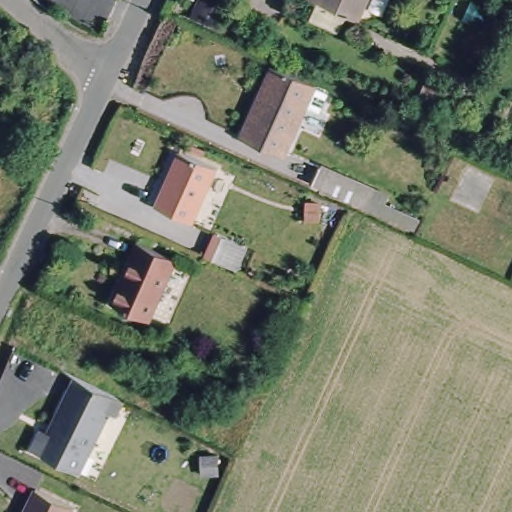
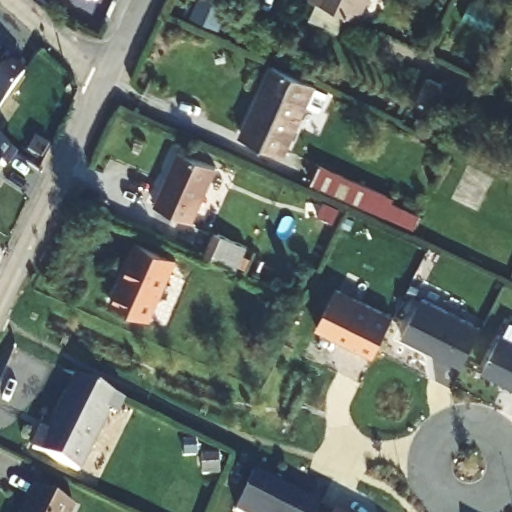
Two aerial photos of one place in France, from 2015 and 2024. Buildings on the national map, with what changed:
unchanged [(311,0),(369,0),(357,23),(311,0)]
new [(23,75),(0,107),(0,58),(23,75)]
unchanged [(317,90),(287,155),(285,159),(242,140),(274,70),(317,90)]
new [(14,154),(4,167),(2,166),(0,169),(0,144),(14,154)]
unchanged [(158,205),(181,150),(219,165),(193,222),(158,205)]
unchanged [(323,162),(390,194),(386,201),(421,217),(415,230),(313,182),(323,162)]
unchanged [(215,232),(247,246),(235,272),(203,257),(215,232)]
unchanged [(137,240),(178,257),(149,321),(114,305),(134,258),(130,256),(137,240)]
new [(316,330),(337,288),(393,316),(373,358),(316,330)]
new [(402,337),(422,298),(482,328),(462,367),(402,337)]
new [(502,335),(512,340),(512,388),(482,373),(502,335)]
unchanged [(90,377),(124,395),(116,410),(110,406),(79,467),(32,444),(43,423),(49,427),(77,371),(90,377)]
new [(320,505),(316,512),(235,512),(255,472),(320,505)]
unchanged [(22,509),(34,487),(69,505),(65,512),(20,512),(22,509)]
new [(335,510),(338,512),(333,512),(335,510)]

